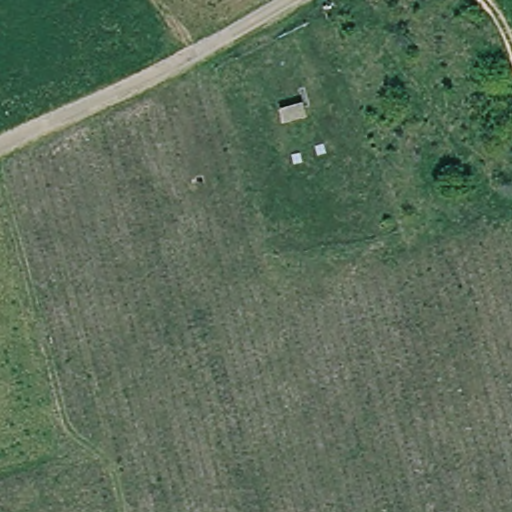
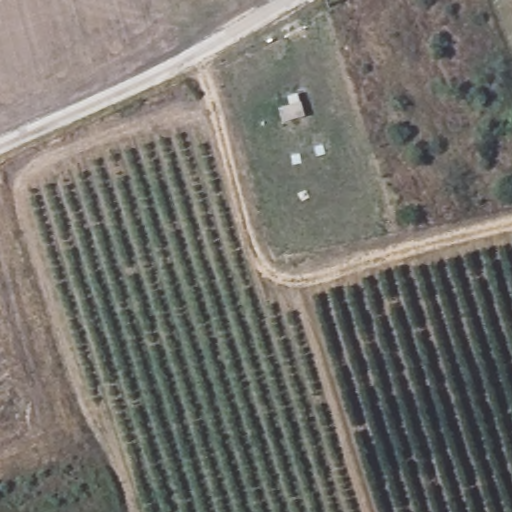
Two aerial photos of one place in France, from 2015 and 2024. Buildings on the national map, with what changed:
unchanged [(302,117),(284,123),(280,111),(299,106),(302,117)]

